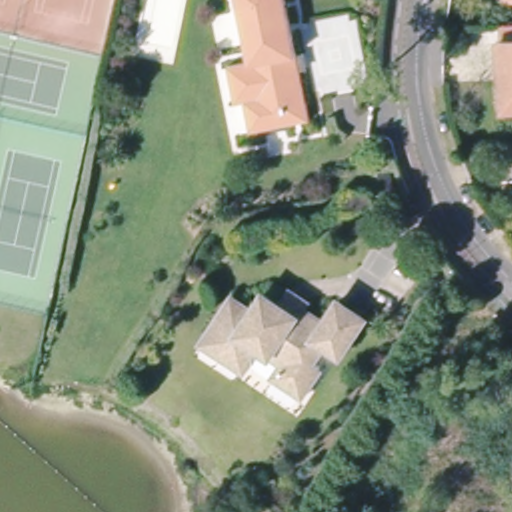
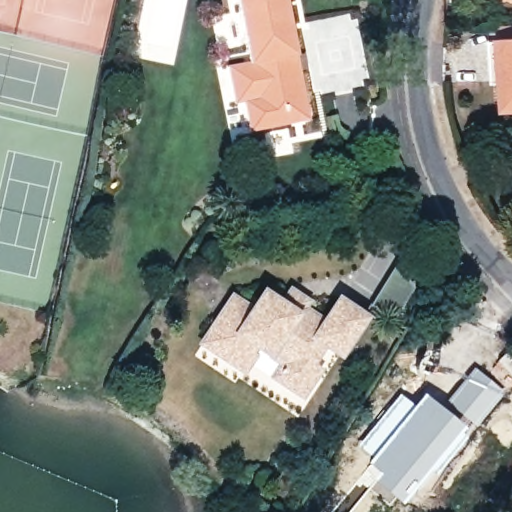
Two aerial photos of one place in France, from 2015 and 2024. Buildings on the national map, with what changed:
unchanged [(249,64),(236,0),(284,0),(307,119),(250,130),(245,102),(232,104),(225,69),(249,64)]
unchanged [(493,43),(502,41),(500,28),(512,27),(512,108),(508,108),(500,109),(493,43)]
unchanged [(249,345),(252,348),(241,362),(202,334),(231,293),(251,308),(264,290),(318,325),(338,296),(362,311),(338,347),(325,337),(311,356),(318,362),(299,389),(273,371),(282,357),(253,338),(249,345)]
new [(475,368),(503,391),(475,426),(446,402),(475,368)]
new [(399,393),(413,404),(423,393),(471,430),(436,472),(431,468),(401,505),(371,483),(378,474),(367,464),(371,458),(357,445),(399,393)]

